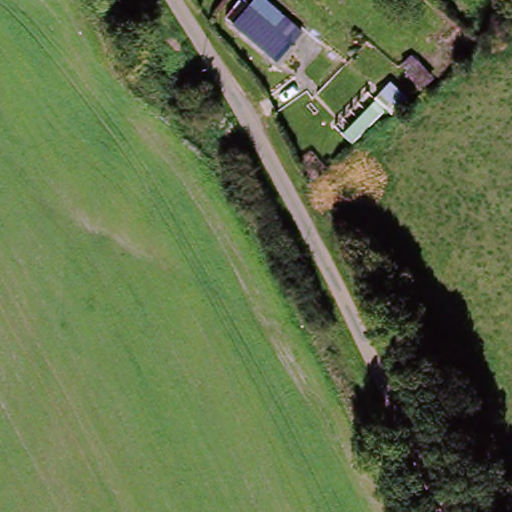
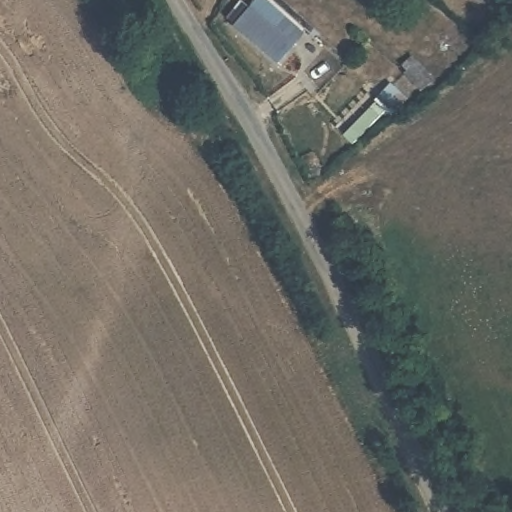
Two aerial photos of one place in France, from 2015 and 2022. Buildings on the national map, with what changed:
unchanged [(243,17),(257,1),(301,42),(288,57),(243,17)]
unchanged [(275,72),(223,26),(236,10),(243,17),(288,57),(275,72)]
unchanged [(393,82),(378,95),(370,86),(383,73),(393,82)]

